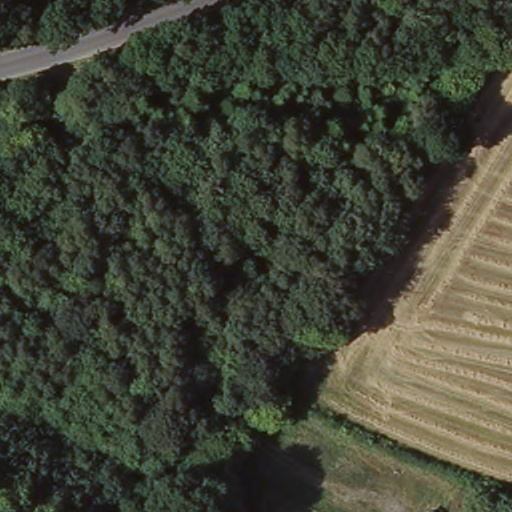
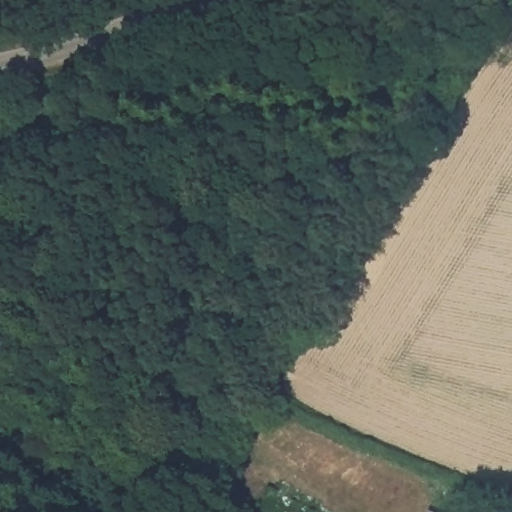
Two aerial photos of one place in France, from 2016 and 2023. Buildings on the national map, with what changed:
unchanged [(429,509),(435,512),(428,512),(429,509)]

